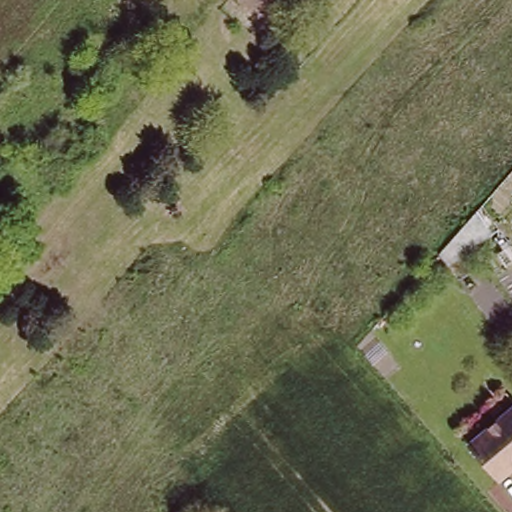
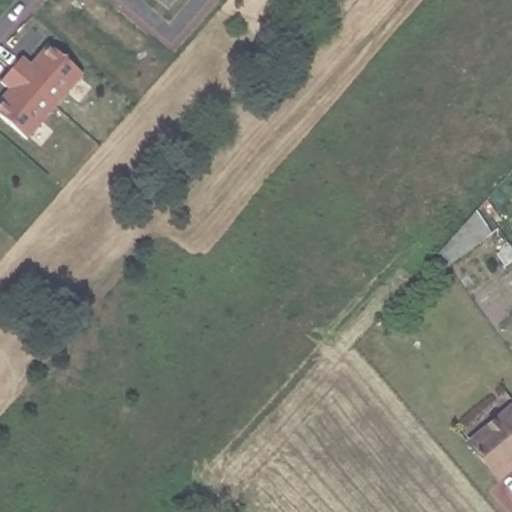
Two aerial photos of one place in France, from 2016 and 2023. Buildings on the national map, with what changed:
new [(4,78),(26,53),(34,60),(52,40),(87,71),(31,136),(0,109),(0,99),(12,85),(4,78)]
unchanged [(442,254),(481,211),(497,236),(451,266),(442,254)]
unchanged [(500,479),(469,443),(512,406),(512,468),(500,479)]

